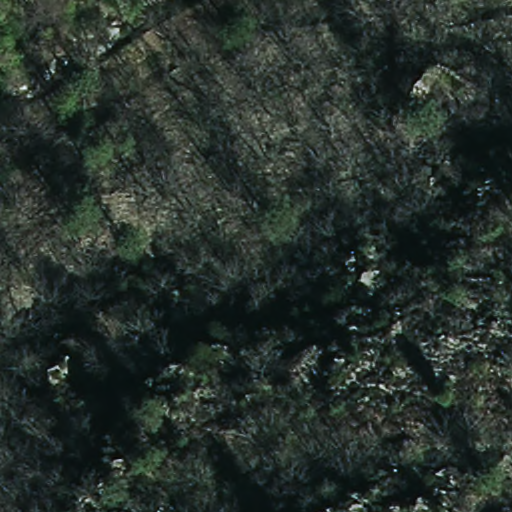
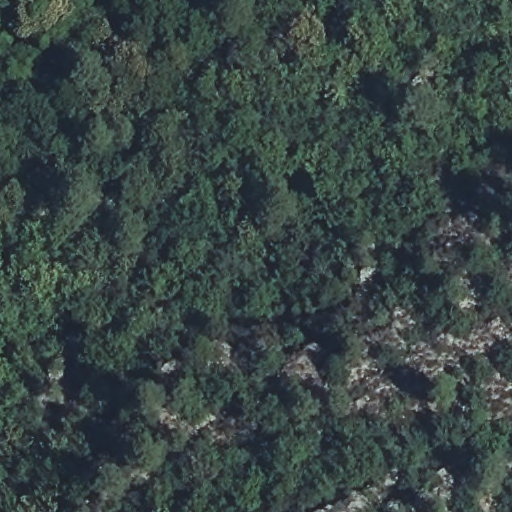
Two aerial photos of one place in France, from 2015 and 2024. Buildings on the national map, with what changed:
[]

